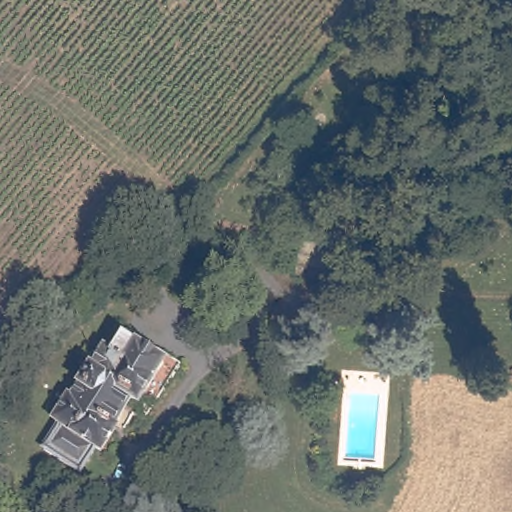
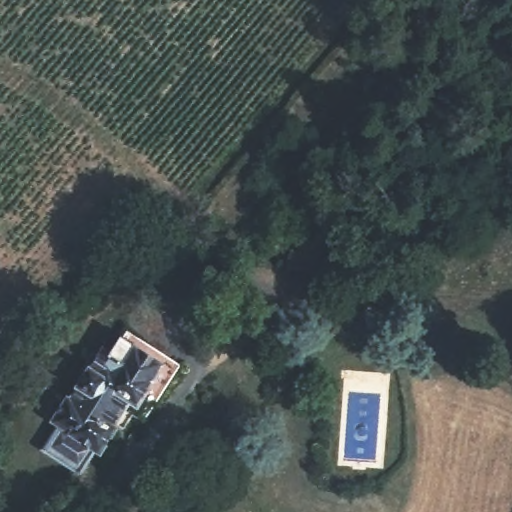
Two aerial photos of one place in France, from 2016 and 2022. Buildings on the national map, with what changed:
unchanged [(138,352),(165,369),(144,406),(132,398),(117,424),(123,427),(109,452),(103,449),(88,475),(50,450),(64,426),(58,422),(75,397),(80,400),(110,353),(131,365),(138,352)]

